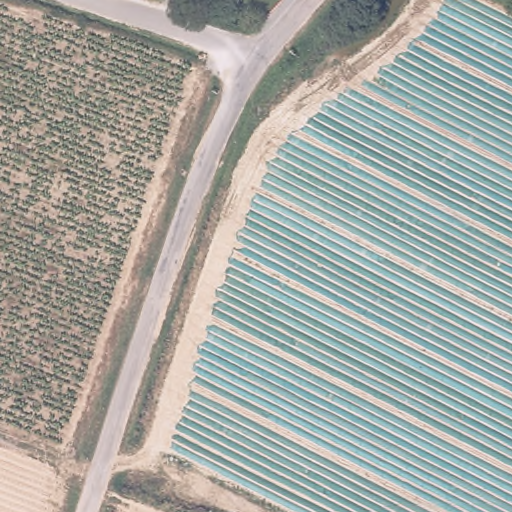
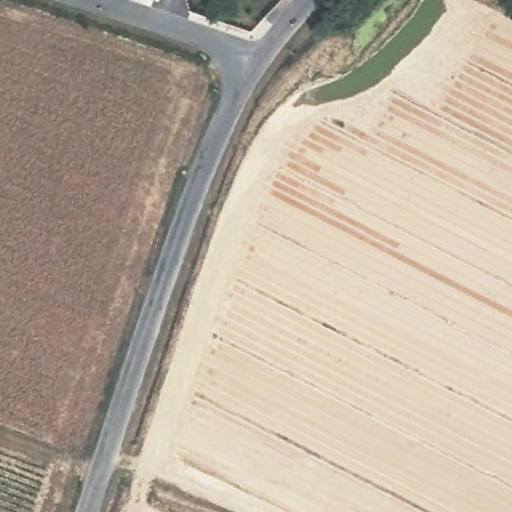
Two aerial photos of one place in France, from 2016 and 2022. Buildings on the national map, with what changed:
[]

